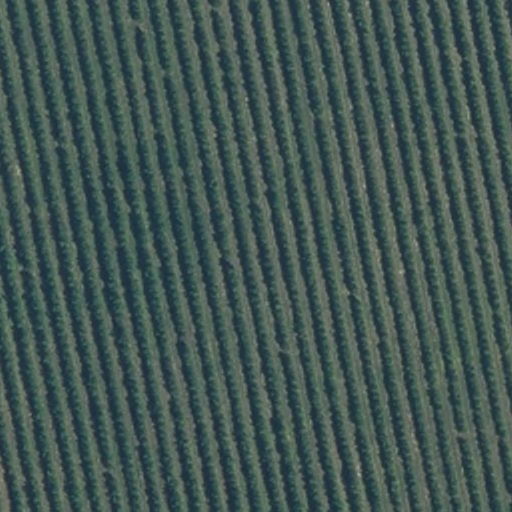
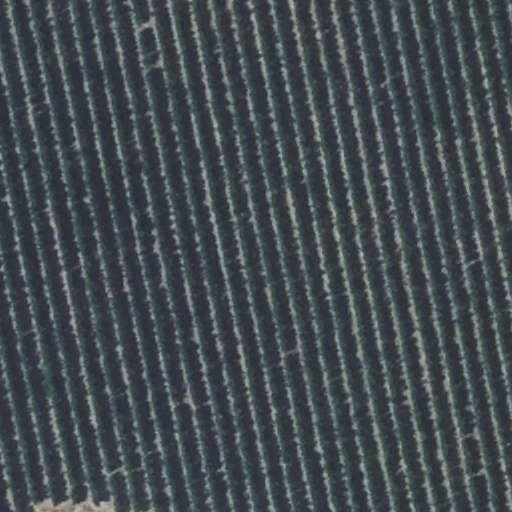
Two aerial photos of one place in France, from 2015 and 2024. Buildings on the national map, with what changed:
[]

